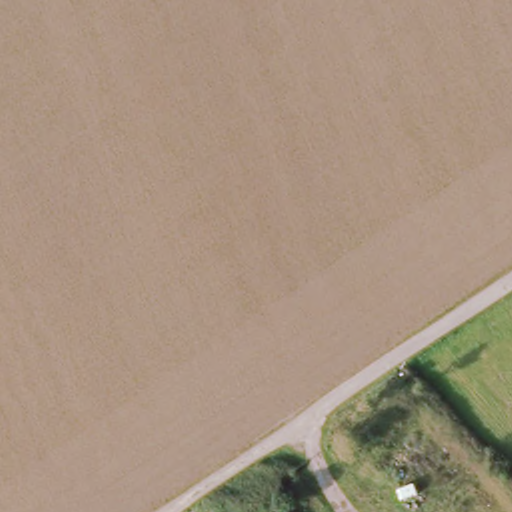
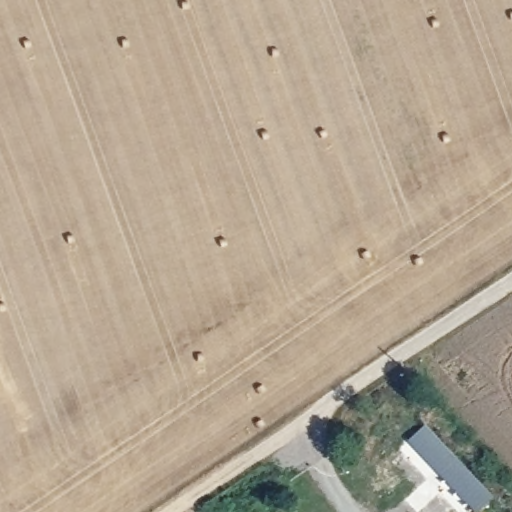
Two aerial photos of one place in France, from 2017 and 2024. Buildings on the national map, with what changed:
new [(408,444),(425,428),(493,500),(481,512),(475,512),(408,444)]

